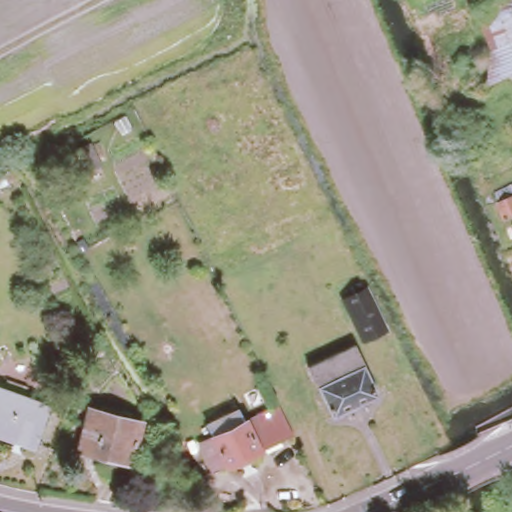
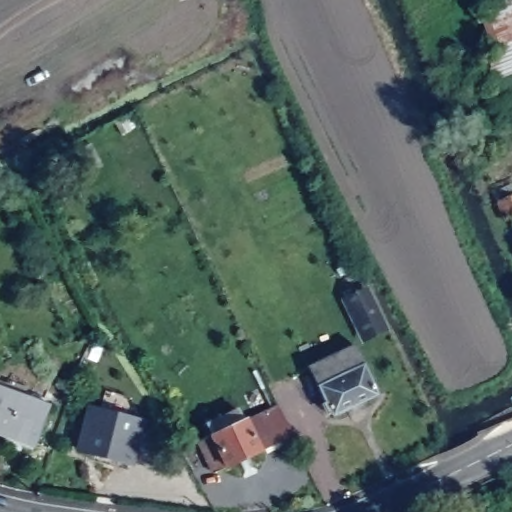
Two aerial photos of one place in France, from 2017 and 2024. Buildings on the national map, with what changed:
unchanged [(487,81),(490,46),(476,6),(492,0),(512,0),(512,114),(502,118),(487,81)]
unchanged [(493,200),(512,191),(512,214),(502,219),(493,200)]
unchanged [(365,284),(388,329),(363,340),(355,343),(335,299),(342,295),(365,284)]
unchanged [(382,397),(335,419),(312,374),(308,366),(355,343),(360,351),(382,397)]
unchanged [(47,404),(35,442),(0,431),(0,387),(47,404)]
unchanged [(212,473),(203,455),(197,459),(192,450),(212,440),(208,434),(235,422),(238,421),(245,418),(247,419),(277,404),(292,435),(212,473)]
unchanged [(138,423),(125,462),(73,448),(87,408),(138,423)]

